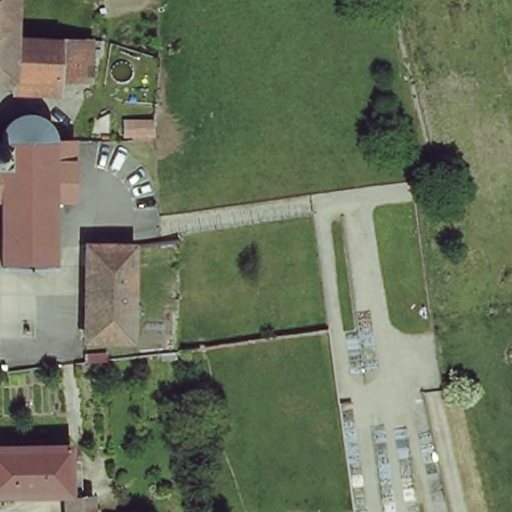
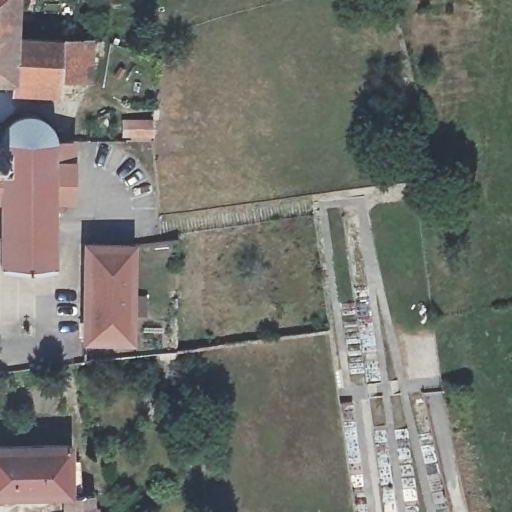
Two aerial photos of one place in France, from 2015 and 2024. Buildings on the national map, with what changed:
unchanged [(19,0),(19,9),(11,9),(10,36),(0,36),(0,0),(19,0)]
unchanged [(52,80),(0,80),(0,36),(10,36),(24,37),(53,37),(52,80)]
unchanged [(88,39),(88,81),(52,80),(53,37),(88,39)]
unchanged [(0,124),(7,117),(16,113),(24,111),(34,112),(41,116),(50,126),(55,136),(72,137),(71,196),(50,197),(52,266),(0,266),(0,124)]
unchanged [(150,135),(133,134),(133,141),(117,141),(118,134),(117,119),(149,119),(150,135)]
unchanged [(128,242),(127,339),(82,341),(82,307),(83,240),(128,242)]
unchanged [(69,492),(0,496),(0,446),(68,442),(68,481),(69,492)]
unchanged [(66,499),(88,496),(90,512),(68,512),(66,499)]

